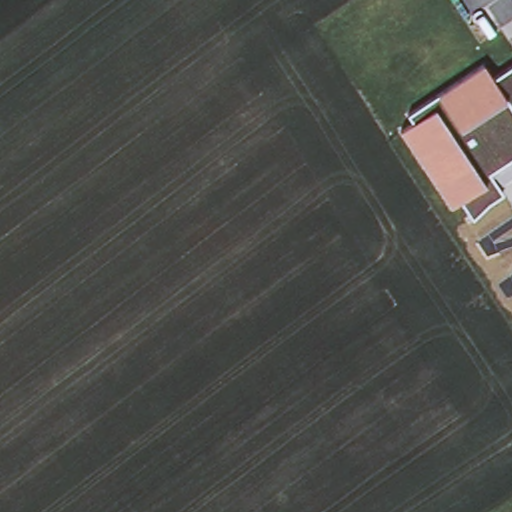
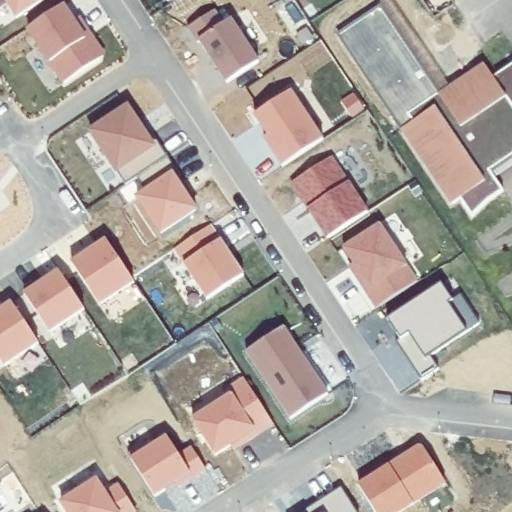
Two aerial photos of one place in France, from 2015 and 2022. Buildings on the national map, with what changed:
new [(18,22),(4,0),(51,0),(18,22)]
new [(83,36),(88,32),(95,44),(103,55),(101,63),(66,87),(30,32),(65,9),(87,42),(83,36)]
new [(229,87),(201,45),(199,47),(189,32),(216,15),(225,28),(233,23),(261,66),(229,87)]
unchanged [(503,193),(484,204),(471,217),(461,199),(451,206),(403,131),(415,122),(408,112),(482,66),(493,79),(512,66),(512,161),(492,176),(503,193)]
new [(285,170),(266,142),(272,137),(266,127),(264,129),(257,119),(293,95),(326,143),(285,170)]
new [(130,110),(143,131),(139,124),(143,121),(148,127),(170,161),(128,189),(92,135),(130,110)]
new [(294,187),(333,160),(370,216),(330,242),(310,212),(306,205),(294,187)]
new [(141,180),(170,161),(188,189),(194,197),(190,200),(183,192),(198,213),(163,237),(139,201),(150,193),(141,180)]
new [(382,228),(420,285),(379,312),(356,277),(360,274),(346,252),(382,228)]
new [(176,252),(212,229),(223,244),(232,258),(246,278),(209,302),(176,252)]
new [(102,309),(74,266),(89,256),(90,258),(109,246),(107,244),(108,243),(137,286),(102,309)]
new [(87,313),(52,336),(26,297),(41,287),(43,290),(61,277),(60,275),(61,275),(87,313)]
new [(441,282),(451,298),(460,292),(479,321),(429,355),(438,368),(421,378),(396,340),(402,337),(388,316),(441,282)]
new [(41,347),(7,370),(0,360),(0,318),(14,308),(13,307),(14,306),(41,347)]
new [(305,361),(330,398),(293,422),(248,356),(285,331),(300,352),(305,361)]
new [(233,449),(241,444),(218,458),(195,423),(233,398),(230,392),(246,382),(275,427),(243,448),(236,453),(233,449)]
new [(209,474),(181,492),(177,485),(167,492),(168,494),(157,501),(130,458),(149,446),(152,451),(169,440),(181,459),(194,451),(209,474)]
new [(422,451),(426,452),(449,487),(409,512),(375,512),(361,490),(422,451)]
new [(99,483),(108,497),(121,488),(137,512),(67,512),(63,506),(99,483)]
new [(343,492),(344,491),(357,512),(314,512),(344,493),(343,492)]

